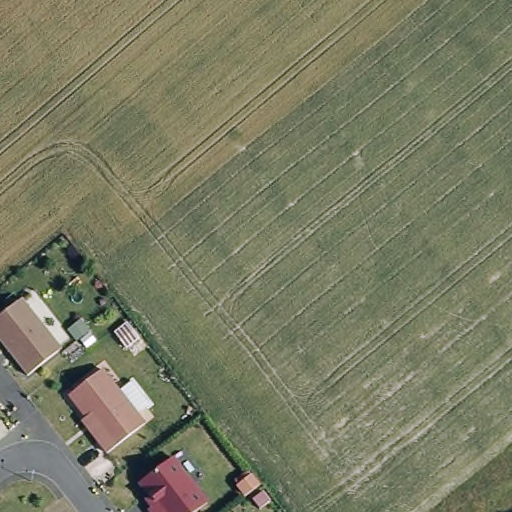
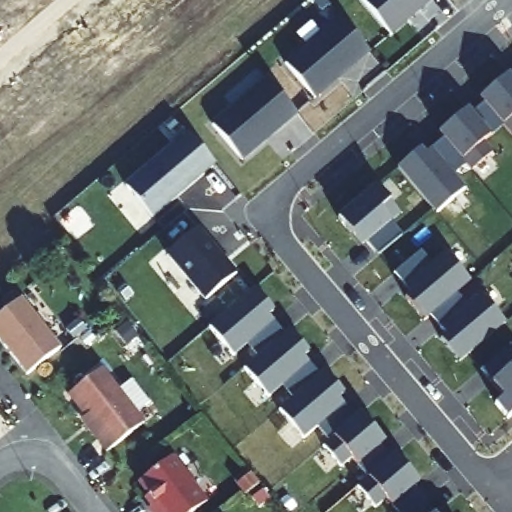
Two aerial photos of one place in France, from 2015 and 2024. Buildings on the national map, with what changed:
new [(358,0),(426,0),(386,34),(358,0)]
new [(341,18),(370,52),(314,99),(286,64),(341,18)]
new [(488,88),(492,93),(512,75),(512,133),(505,139),(477,105),(473,100),(488,88)]
new [(297,114),(273,134),(269,134),(264,138),(266,140),(242,160),(213,126),(268,79),(297,114)]
new [(432,135),(447,122),(451,127),(477,105),(496,128),(476,144),(486,156),(464,173),(437,141),(432,135)]
new [(119,187),(184,132),(211,164),(146,219),(119,187)]
new [(391,170),(414,151),(418,156),(437,141),(459,166),(447,178),(459,192),(429,216),(391,170)]
new [(369,188),(393,216),(384,225),(395,238),(371,258),(349,231),(344,235),(331,221),(369,188)]
new [(231,273),(199,300),(161,254),(192,227),(231,273)]
new [(413,254),(424,267),(439,255),(464,284),(417,323),(398,300),(403,296),(387,277),(413,254)]
new [(202,329),(248,291),(268,313),(262,317),(278,336),(252,358),(241,346),(227,358),(202,329)]
new [(433,342),(439,337),(423,318),(449,296),(459,309),(474,297),(498,326),(452,364),(433,342)]
unchanged [(19,377),(0,353),(0,310),(12,300),(53,350),(19,377)]
new [(283,331),(303,354),(298,358),(314,377),(288,399),(276,387),(263,399),(238,370),(283,331)]
new [(503,394),(480,367),(504,347),(512,356),(512,411),(508,415),(495,400),(503,394)]
unchanged [(95,370),(138,424),(100,454),(90,441),(95,438),(62,396),(95,370)]
new [(319,372),(338,394),(333,399),(350,419),(324,441),(312,428),(298,440),(274,411),(319,372)]
new [(355,414),(368,428),(363,433),(386,458),(364,477),(346,458),(336,467),(318,447),(355,414)]
new [(390,454),(403,469),(398,473),(421,499),(406,512),(394,512),(382,499),(371,508),(353,487),(390,454)]
unchanged [(166,458),(201,503),(190,512),(145,512),(143,510),(150,505),(133,483),(166,458)]
new [(418,502),(427,512),(406,512),(418,502)]

